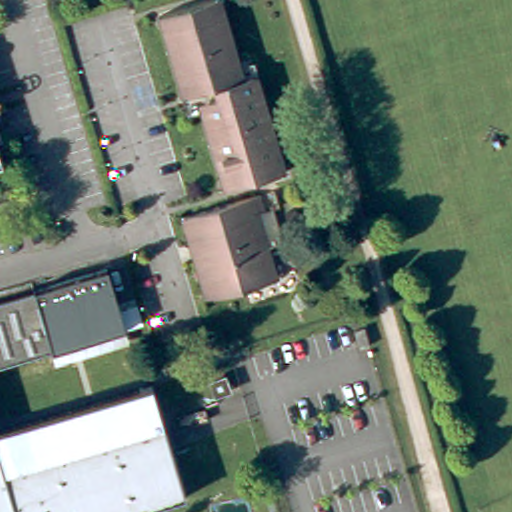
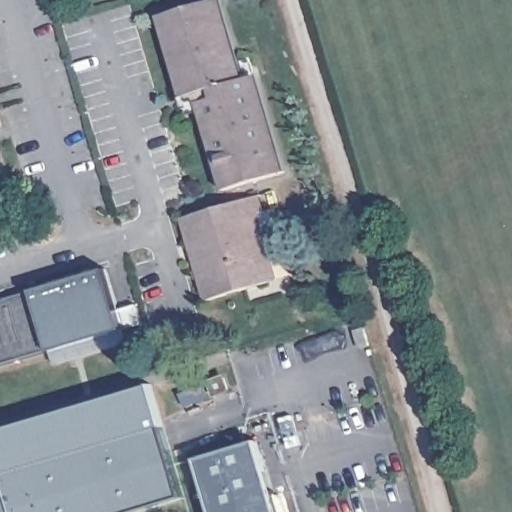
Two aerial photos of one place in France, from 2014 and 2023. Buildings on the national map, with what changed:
unchanged [(160,9),(190,0),(218,0),(240,74),(197,86),(184,90),(160,9)]
unchanged [(240,74),(252,70),(281,165),(225,182),(197,86),(240,74)]
unchanged [(267,286),(204,305),(192,265),(197,263),(192,247),(188,249),(180,222),(258,199),(262,213),(256,215),(267,252),(275,283),(267,286)]
unchanged [(120,333),(0,368),(0,300),(101,270),(120,333)]
unchanged [(180,497),(132,512),(0,512),(0,429),(147,385),(180,497)]
new [(199,460),(257,442),(278,512),(213,512),(199,460)]

